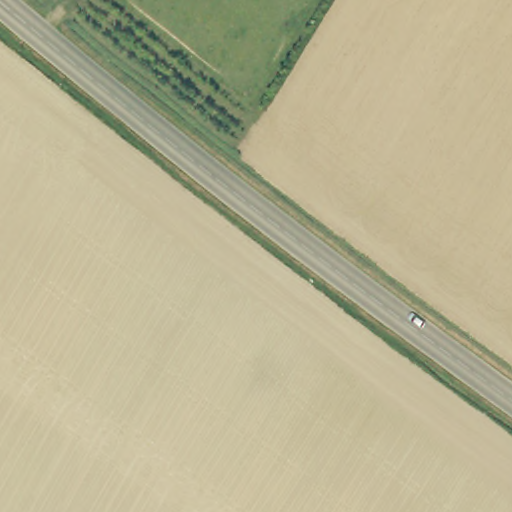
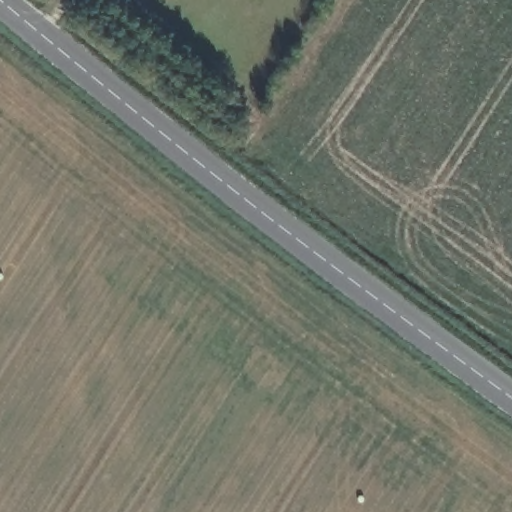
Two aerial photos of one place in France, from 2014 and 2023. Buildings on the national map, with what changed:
[]

